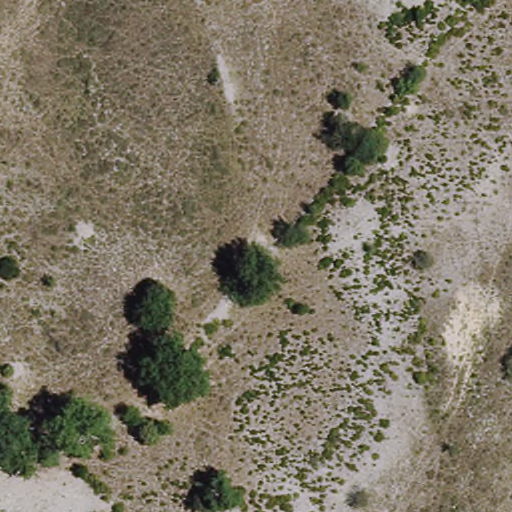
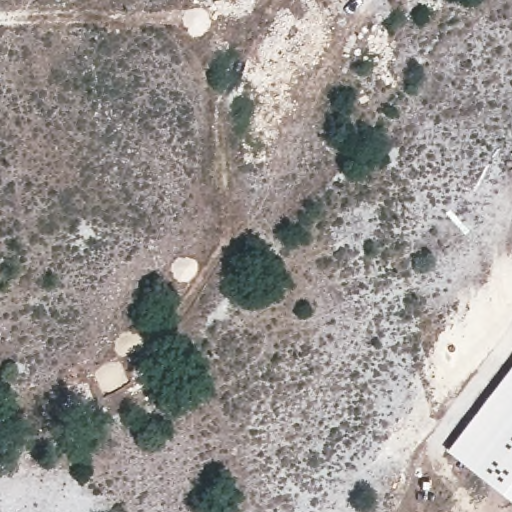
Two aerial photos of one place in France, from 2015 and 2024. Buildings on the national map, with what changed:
new [(512,367),(512,499),(449,450),(512,367)]

